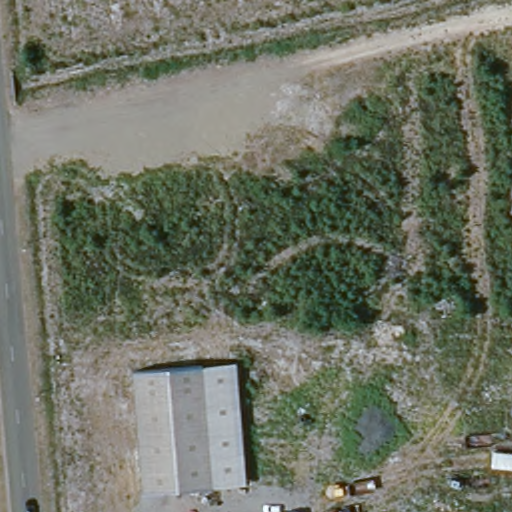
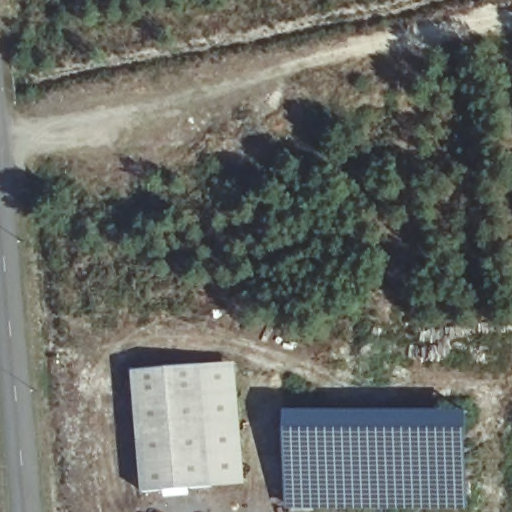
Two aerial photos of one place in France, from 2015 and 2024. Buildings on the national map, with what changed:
unchanged [(200,364),(237,362),(247,485),(209,486),(200,364)]
unchanged [(209,486),(139,491),(130,369),(200,364),(209,486)]
new [(287,510),(287,412),(469,412),(466,510),(287,510)]

